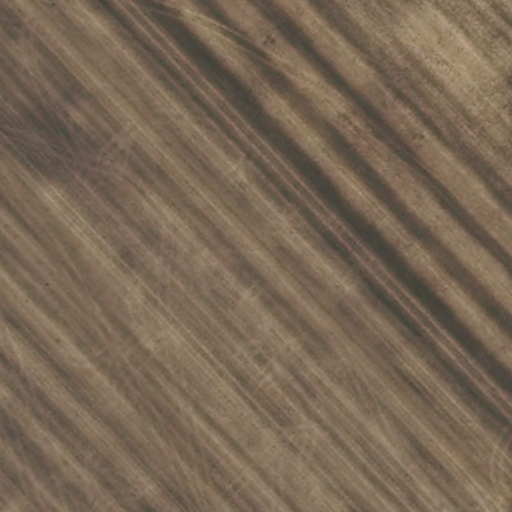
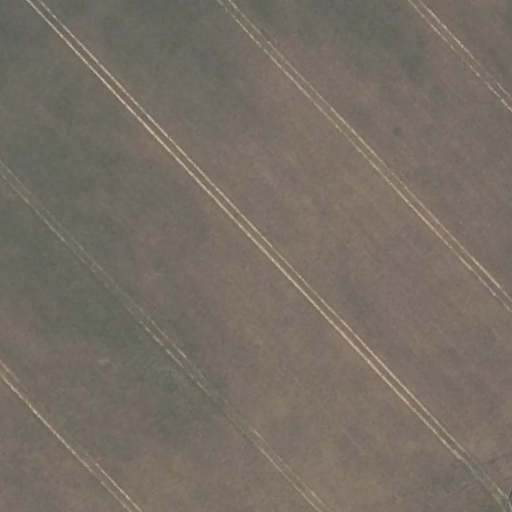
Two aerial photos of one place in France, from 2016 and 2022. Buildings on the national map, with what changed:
[]

